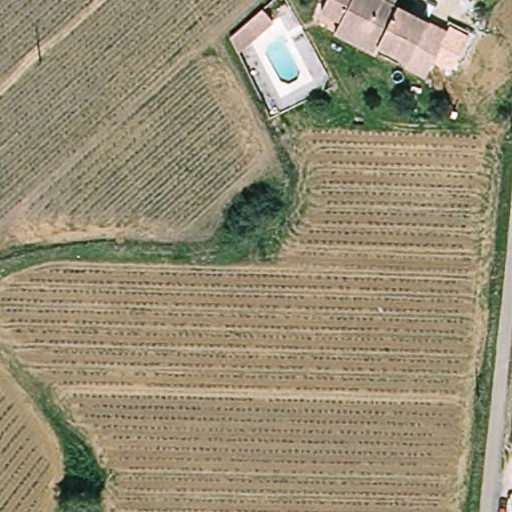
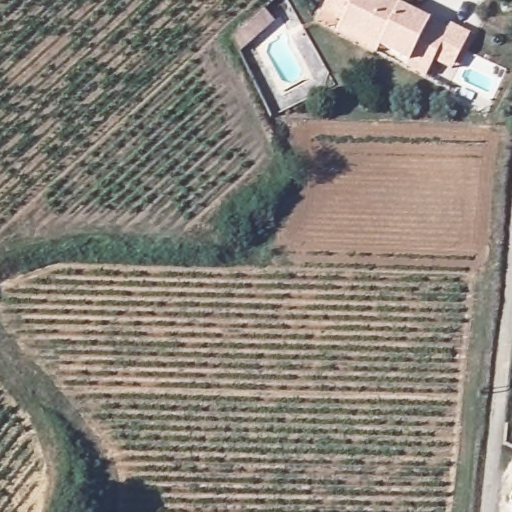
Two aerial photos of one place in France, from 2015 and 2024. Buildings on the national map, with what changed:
unchanged [(338,27),(345,17),(327,4),(331,0),(388,0),(451,45),(421,86),(403,73),(406,68),(378,48),(373,54),(338,27)]
unchanged [(224,37),(255,10),(265,22),(231,53),(224,37)]

